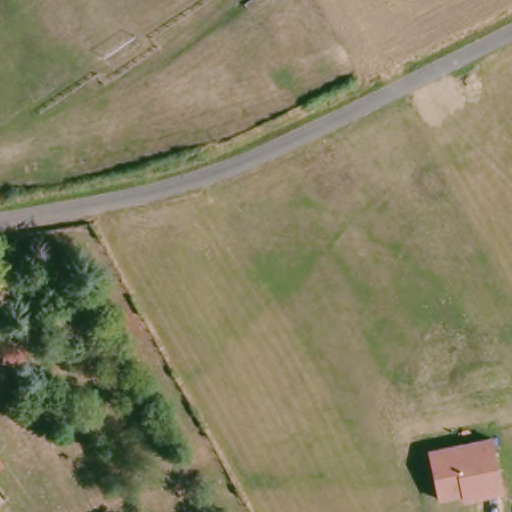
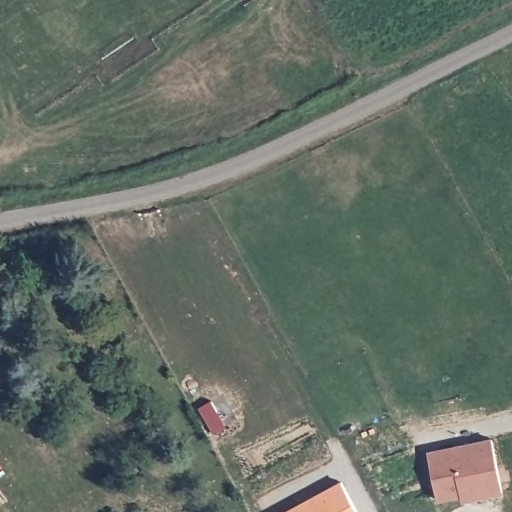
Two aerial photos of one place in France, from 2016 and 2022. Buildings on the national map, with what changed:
unchanged [(427,450),(491,438),(501,492),(461,502),(459,495),(436,500),(427,450)]
new [(356,512),(290,512),(342,485),(356,512)]

